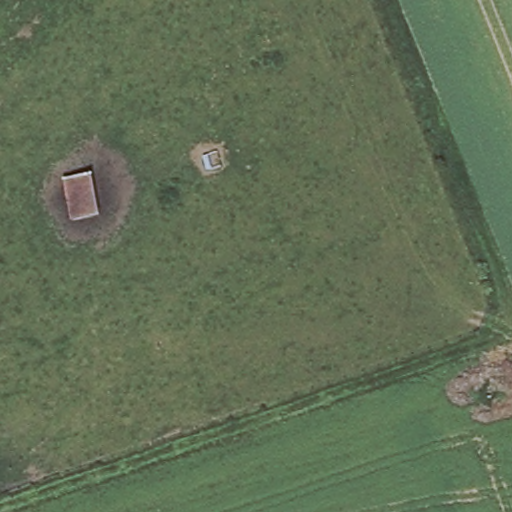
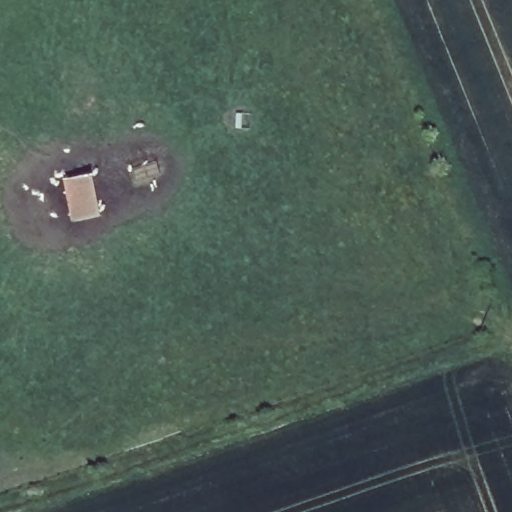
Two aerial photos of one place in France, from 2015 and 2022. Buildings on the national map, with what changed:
unchanged [(60,183),(87,175),(96,214),(68,227),(60,183)]

